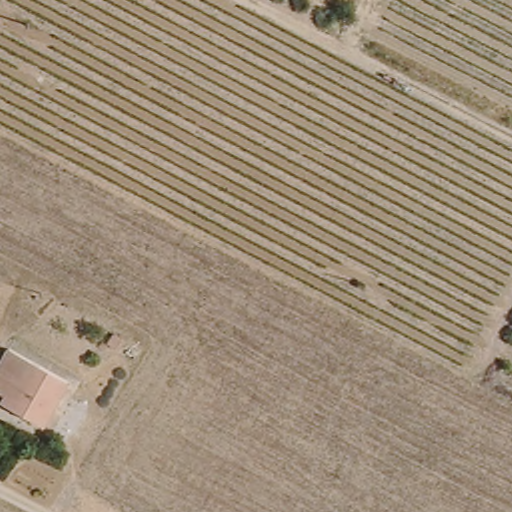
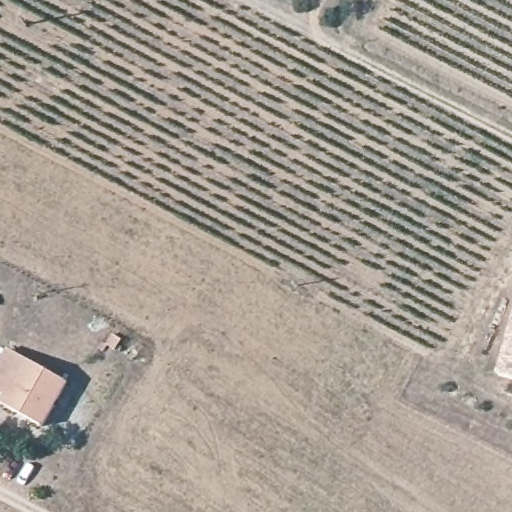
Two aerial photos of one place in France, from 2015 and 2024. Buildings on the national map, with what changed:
new [(496,373),(512,313),(512,378),(496,373)]
unchanged [(40,425),(0,408),(0,398),(1,396),(0,395),(0,354),(1,353),(57,378),(40,425)]

